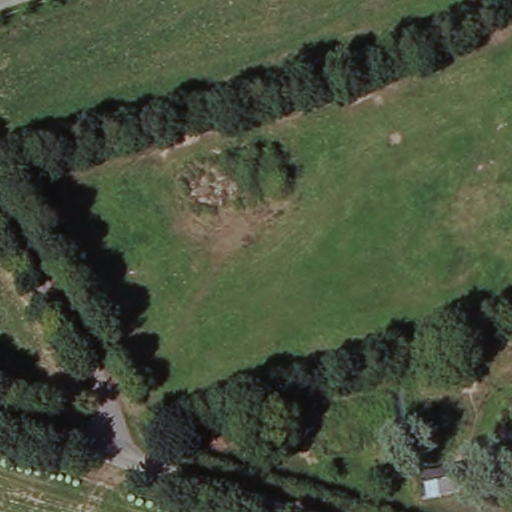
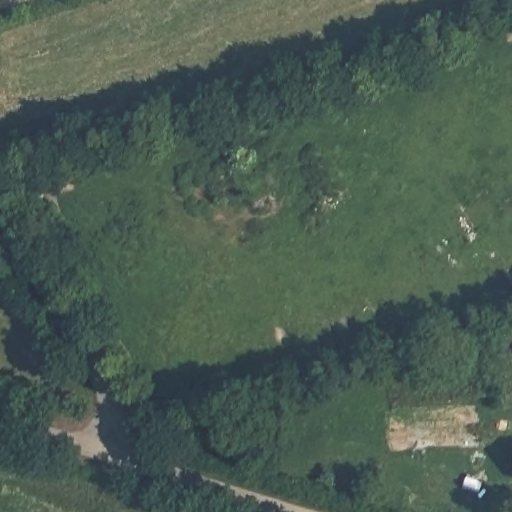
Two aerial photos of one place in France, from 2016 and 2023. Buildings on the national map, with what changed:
unchanged [(417,477),(447,471),(444,457),(459,454),(463,467),(469,490),(453,493),(422,498),(417,477)]

